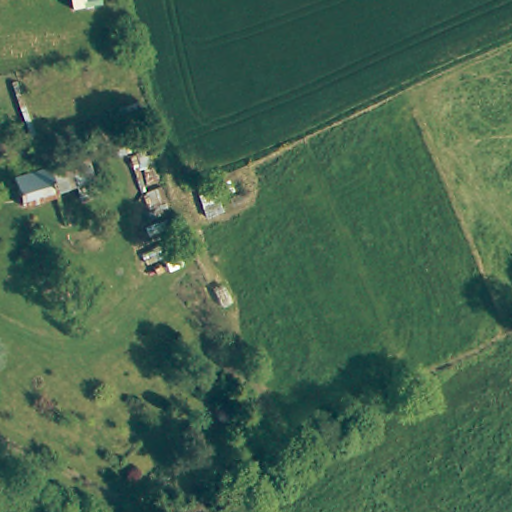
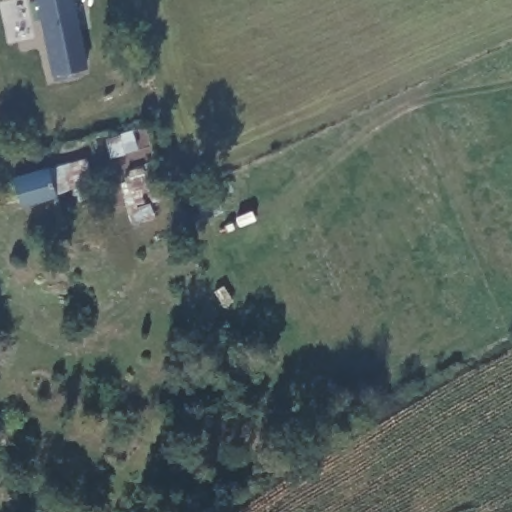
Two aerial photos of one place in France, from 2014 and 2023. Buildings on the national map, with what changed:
new [(87,66),(75,69),(75,74),(53,80),(36,0),(74,0),(87,66)]
unchanged [(129,161),(153,154),(158,169),(150,171),(169,227),(160,235),(155,234),(129,161)]
unchanged [(88,159),(95,184),(58,194),(59,202),(22,211),(13,177),(88,159)]

